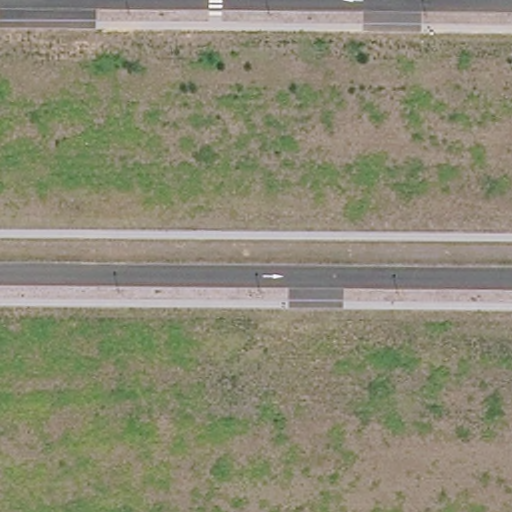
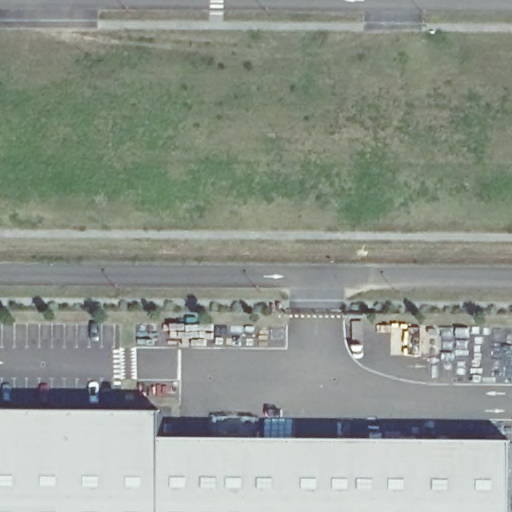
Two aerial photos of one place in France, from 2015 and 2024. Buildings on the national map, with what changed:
new [(0,512),(0,412),(162,414),(162,441),(512,444),(512,512),(0,512)]

